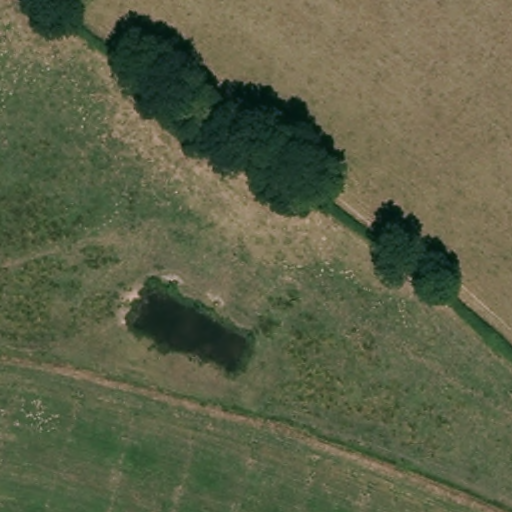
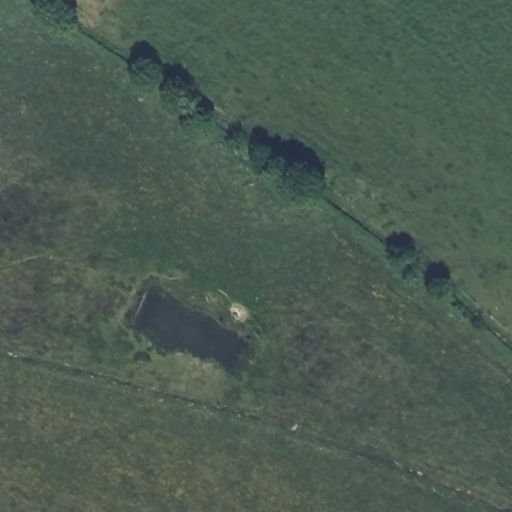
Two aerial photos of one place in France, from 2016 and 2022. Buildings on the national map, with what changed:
[]

